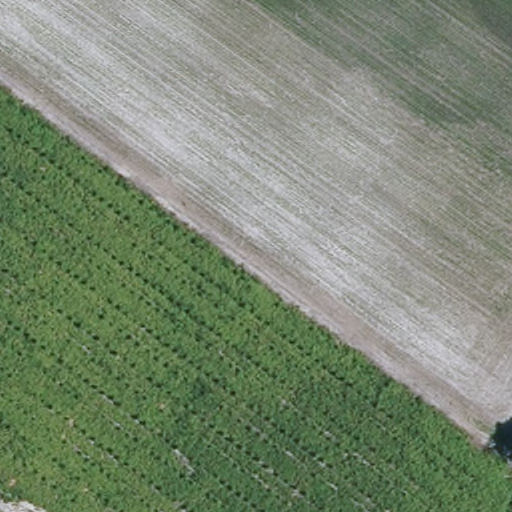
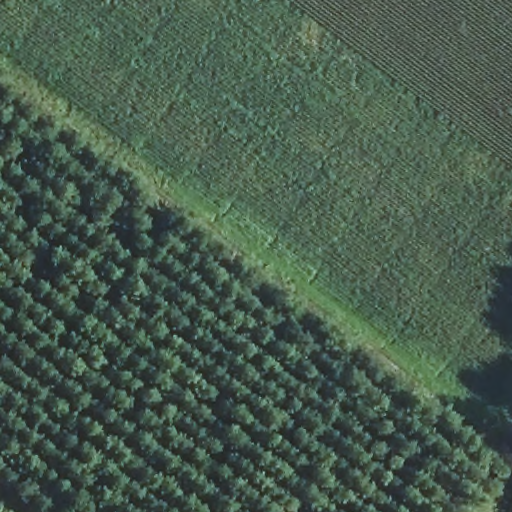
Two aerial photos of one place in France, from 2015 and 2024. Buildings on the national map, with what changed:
[]

